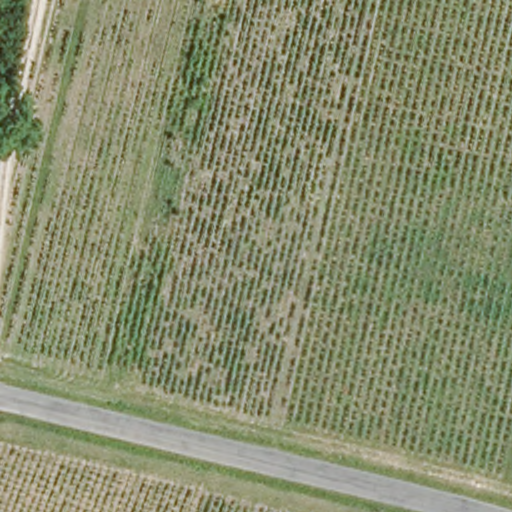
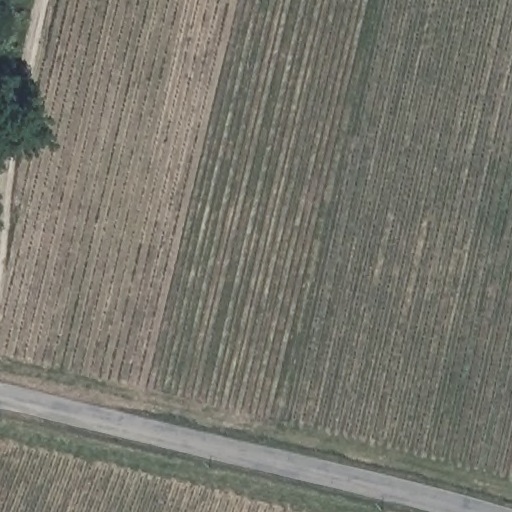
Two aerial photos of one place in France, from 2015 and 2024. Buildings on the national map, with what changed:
[]

